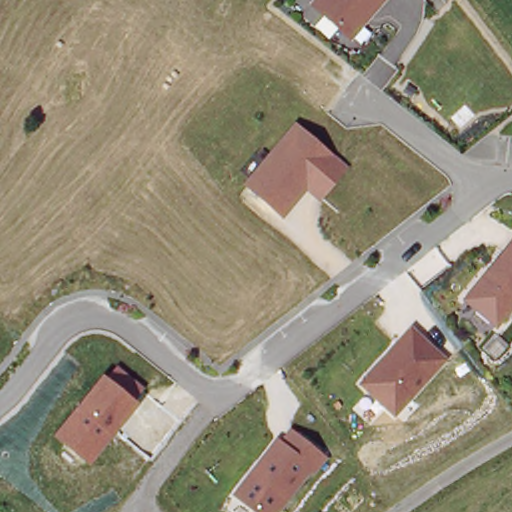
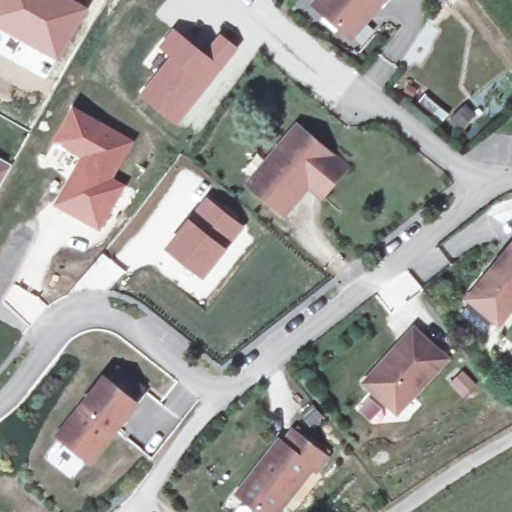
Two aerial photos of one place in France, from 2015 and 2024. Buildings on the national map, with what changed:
new [(57,62),(0,30),(0,0),(75,0),(89,7),(57,62)]
unchanged [(311,5),(316,0),(386,0),(350,40),(311,5)]
new [(172,27),(203,50),(220,31),(239,48),(223,68),(177,125),(138,94),(169,55),(157,46),(172,27)]
new [(72,104),(136,140),(115,177),(127,184),(99,232),(52,205),(79,157),(51,140),(72,104)]
unchanged [(351,165),(322,200),(309,189),(287,216),(247,184),(297,125),(351,165)]
new [(0,192),(0,163),(12,170),(0,192)]
new [(206,195),(244,225),(202,279),(163,248),(206,195)]
unchanged [(500,327),(492,321),(485,332),(472,320),(479,310),(466,300),(492,270),(512,246),(512,312),(500,327)]
unchanged [(450,357),(396,415),(360,380),(415,325),(450,357)]
unchanged [(144,388),(135,398),(142,403),(116,434),(93,464),(55,435),(80,407),(104,375),(107,377),(119,366),(144,388)]
unchanged [(329,456),(315,473),(312,471),(281,512),(258,512),(235,494),(278,440),(282,442),(292,428),(329,456)]

